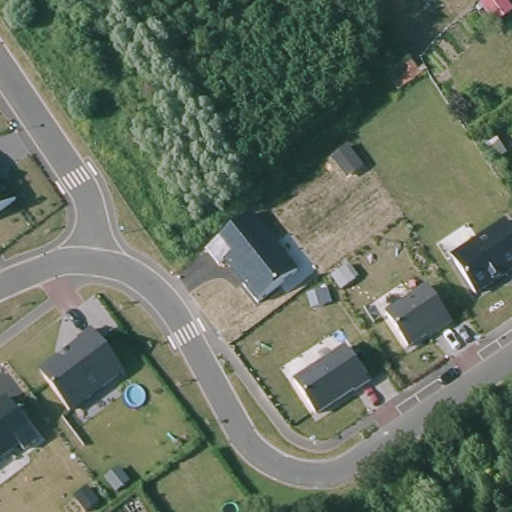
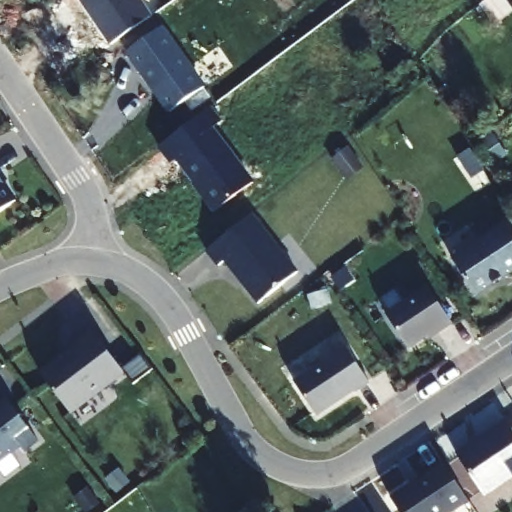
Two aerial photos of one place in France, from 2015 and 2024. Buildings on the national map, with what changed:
new [(80,0),(143,0),(152,14),(110,44),(80,0)]
unchanged [(506,0),(511,0),(507,3),(506,0)]
new [(206,86),(169,114),(125,53),(164,26),(206,86)]
new [(214,127),(253,181),(214,213),(175,160),(170,164),(158,148),(212,107),(222,121),(214,127)]
unchanged [(1,171),(0,172),(0,169),(1,171)]
unchanged [(5,185),(7,183),(17,199),(0,211),(0,178),(5,185)]
unchanged [(298,267),(261,298),(225,258),(220,263),(207,247),(255,212),(298,267)]
unchanged [(512,271),(477,294),(452,259),(477,242),(475,239),(505,220),(512,230),(512,271)]
unchanged [(451,319),(407,345),(385,310),(394,304),(386,292),(407,278),(415,290),(428,281),(451,319)]
unchanged [(77,346),(75,344),(90,334),(124,376),(70,416),(39,373),(77,346)]
unchanged [(345,350),(368,384),(316,419),(294,382),(345,350)]
unchanged [(9,399),(41,441),(25,453),(21,448),(0,463),(0,406),(9,399)]
new [(457,454),(507,421),(512,427),(512,477),(485,495),(457,454)]
new [(450,512),(401,512),(391,497),(410,484),(412,486),(430,474),(429,472),(444,462),(469,499),(450,512)]

